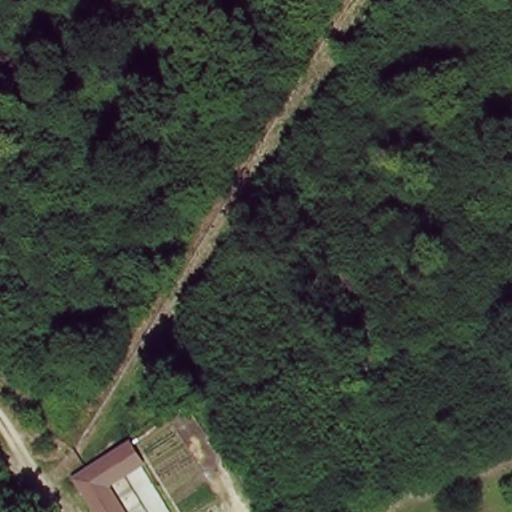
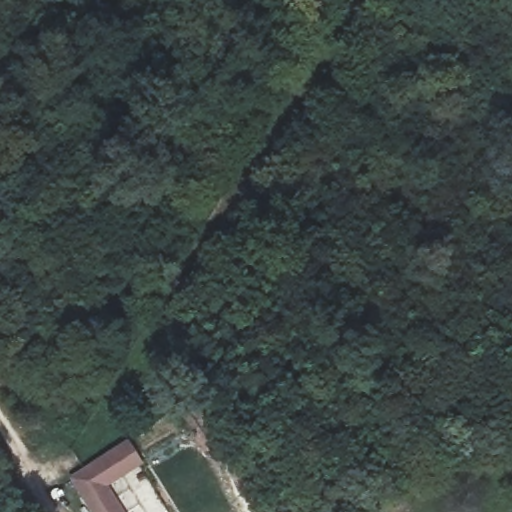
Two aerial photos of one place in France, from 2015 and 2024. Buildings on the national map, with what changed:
unchanged [(146,465),(111,486),(126,512),(89,512),(68,477),(128,439),(146,465)]

